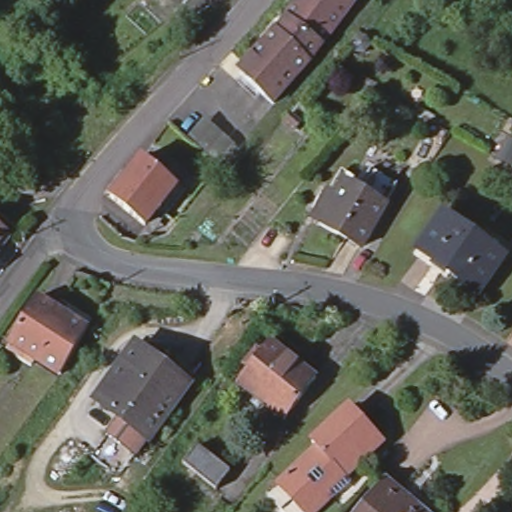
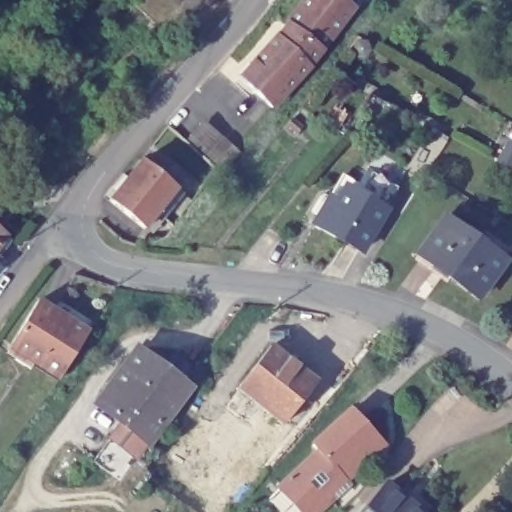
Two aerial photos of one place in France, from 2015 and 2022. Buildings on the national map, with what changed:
unchanged [(287,23),(286,21),(302,0),(344,0),(352,6),(306,68),(292,83),(257,56),(275,35),(277,36),(287,23)]
unchanged [(292,83),(273,104),(240,75),(257,56),(292,83)]
unchanged [(203,117),(242,151),(225,170),(188,136),(203,117)]
unchanged [(298,128),(292,135),(282,126),(288,119),(298,128)]
unchanged [(113,183),(118,178),(122,180),(136,163),(172,191),(140,232),(104,204),(117,187),(113,183)]
unchanged [(332,207),(345,185),(384,209),(360,250),(312,223),(324,202),(332,207)]
unchanged [(503,260),(477,298),(416,253),(443,216),(503,260)]
unchanged [(5,234),(0,240),(0,230),(5,234)]
unchanged [(88,330),(59,377),(8,346),(37,299),(88,330)]
unchanged [(315,381),(282,422),(236,387),(269,344),(315,381)]
unchanged [(186,388),(147,439),(97,402),(136,351),(186,388)]
unchanged [(312,449),(347,414),(373,441),(356,458),(363,464),(343,484),(341,482),(325,498),(329,502),(319,512),(300,512),(280,491),(317,455),(312,449)]
demolished [(196,448),(229,474),(215,492),(182,466),(196,448)]
unchanged [(420,512),(361,512),(385,483),(420,512)]

